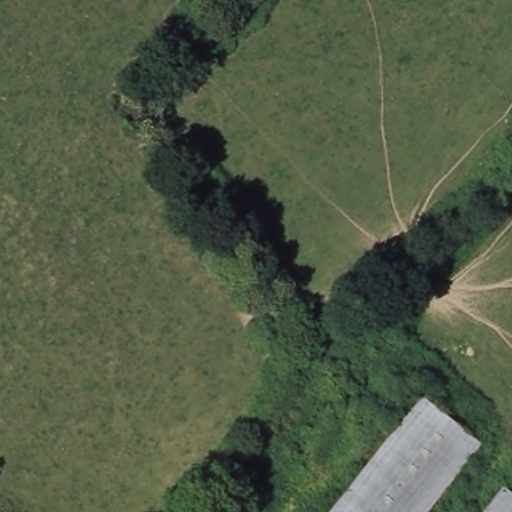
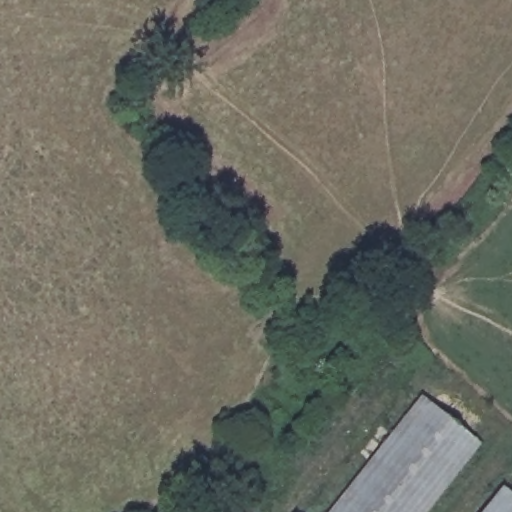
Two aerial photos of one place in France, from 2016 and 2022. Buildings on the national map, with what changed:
unchanged [(424,399),(482,446),(429,512),(334,512),(424,399)]
unchanged [(505,484),(512,489),(512,512),(482,512),(505,484)]

